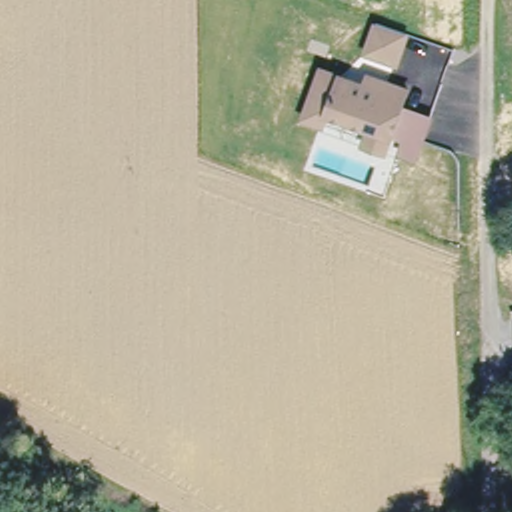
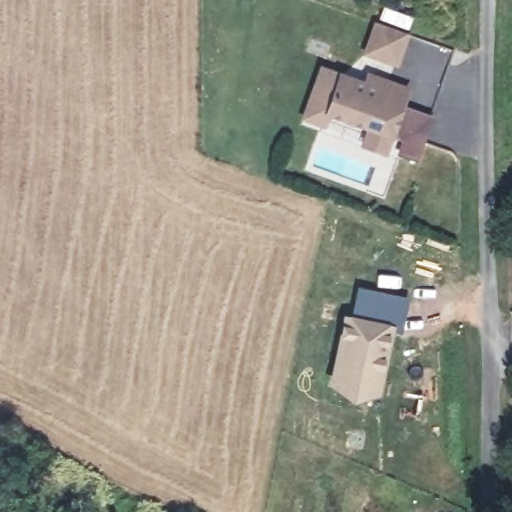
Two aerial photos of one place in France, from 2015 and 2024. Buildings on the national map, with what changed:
unchanged [(409,31),(396,67),(361,54),(373,19),(409,31)]
unchanged [(361,80),(366,70),(410,89),(404,105),(432,115),(417,162),(395,154),(400,140),(392,138),(386,156),(359,147),(363,132),(329,119),(324,130),(298,119),(320,65),(361,80)]
new [(354,328),(360,296),(381,300),(407,307),(400,339),(388,336),(375,398),(335,389),(349,326),(354,328)]

